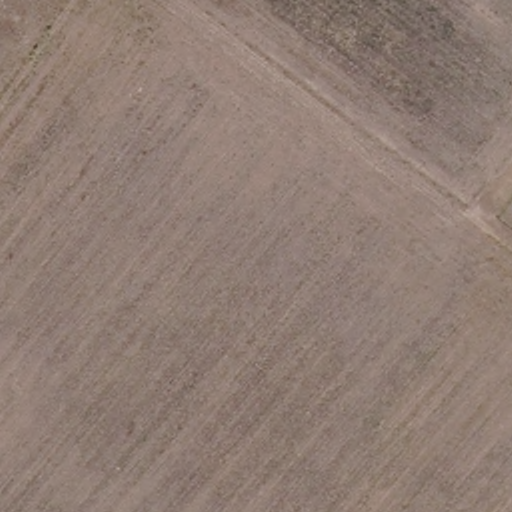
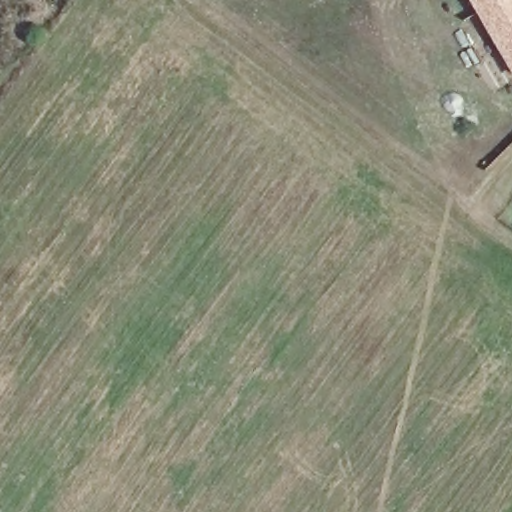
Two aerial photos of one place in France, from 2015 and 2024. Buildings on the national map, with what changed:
new [(468,0),(512,0),(512,76),(468,0)]

